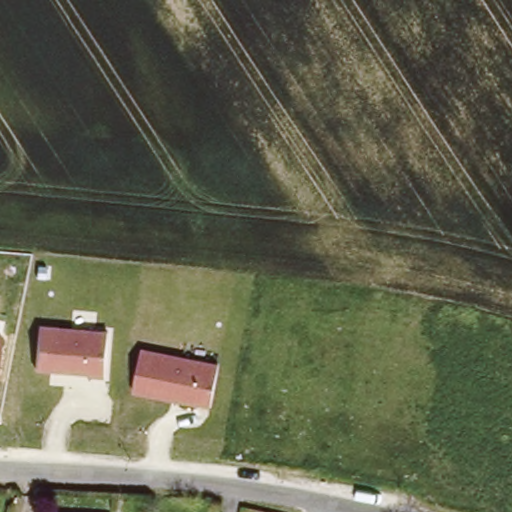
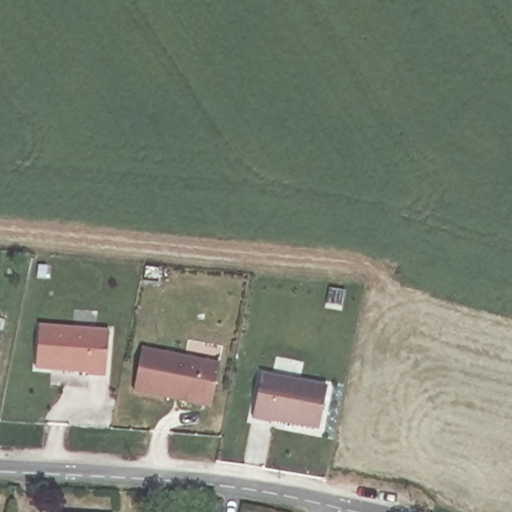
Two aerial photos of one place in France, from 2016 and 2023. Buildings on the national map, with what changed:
unchanged [(105,376),(35,370),(40,324),(109,330),(105,376)]
unchanged [(0,341),(0,331),(2,331),(0,341)]
unchanged [(210,408),(132,393),(142,347),(218,362),(210,408)]
new [(329,387),(319,430),(271,420),(270,423),(252,420),(261,373),(329,387)]

